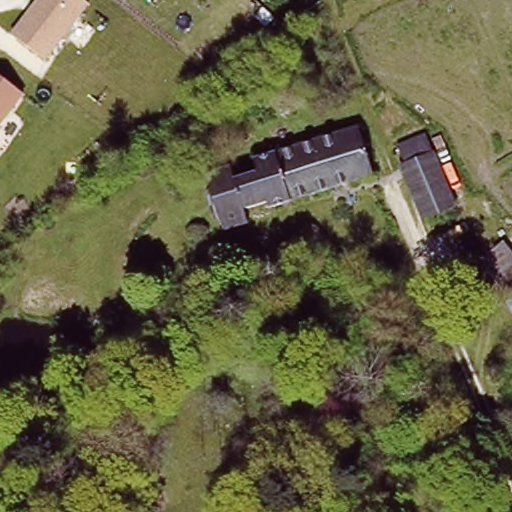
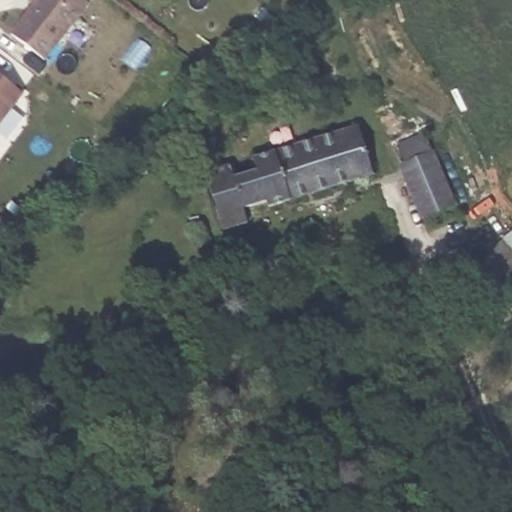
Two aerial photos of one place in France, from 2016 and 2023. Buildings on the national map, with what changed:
unchanged [(46,62),(12,39),(41,0),(84,0),(89,3),(46,62)]
unchanged [(0,123),(0,75),(23,90),(0,123)]
unchanged [(270,201),(260,170),(257,157),(361,125),(376,172),(271,205),(270,201)]
unchanged [(425,132),(454,202),(426,214),(397,143),(425,132)]
unchanged [(270,201),(245,209),(250,222),(225,229),(207,172),(232,165),(235,177),(260,170),(270,201)]
unchanged [(512,249),(512,304),(492,277),(486,269),(488,267),(512,249)]

